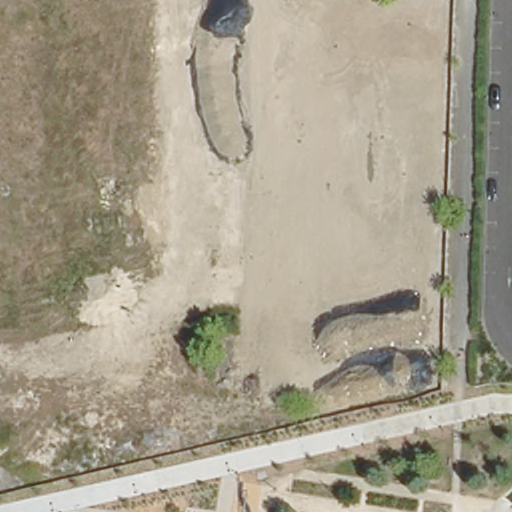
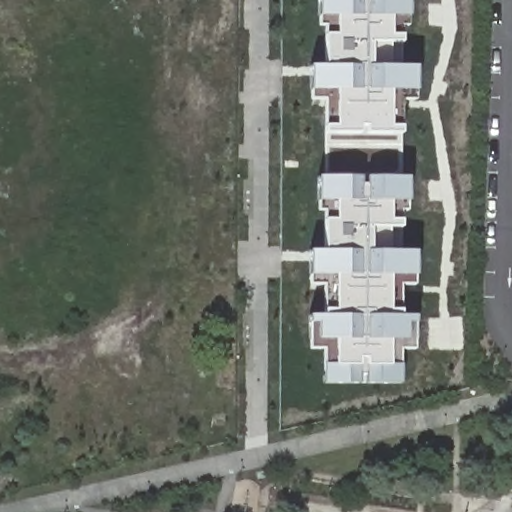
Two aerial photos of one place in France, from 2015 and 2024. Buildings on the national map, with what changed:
new [(322,350),(307,349),(307,316),(307,315),(317,314),(321,286),(307,285),(307,275),(307,274),(307,250),(322,250),(323,219),(325,212),(320,212),(316,201),(315,177),(321,176),(322,134),(322,125),(322,100),(308,100),(308,91),(308,90),(308,65),(323,66),(324,35),(319,34),(318,26),(317,26),(316,16),(318,16),(318,0),(409,0),(407,17),(403,18),(405,25),(397,25),(397,35),(402,35),(402,44),(383,43),(382,66),(416,66),(416,91),(410,91),(413,100),(400,100),(396,126),(401,126),(401,135),(387,135),(385,177),(407,177),(407,201),(401,201),(402,209),(391,209),(390,220),(401,220),(401,228),(382,228),(380,251),(417,251),(417,277),(411,277),(412,283),(397,283),(393,310),(401,310),(402,316),(415,316),(415,323),(410,323),(413,350),(399,350),(400,384),(357,384),(320,384),(322,364),(322,350)]

